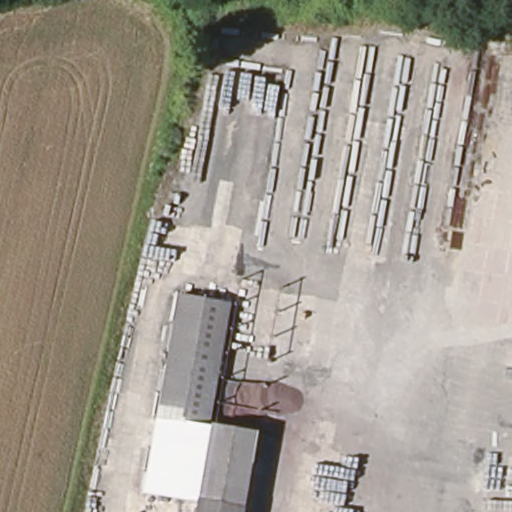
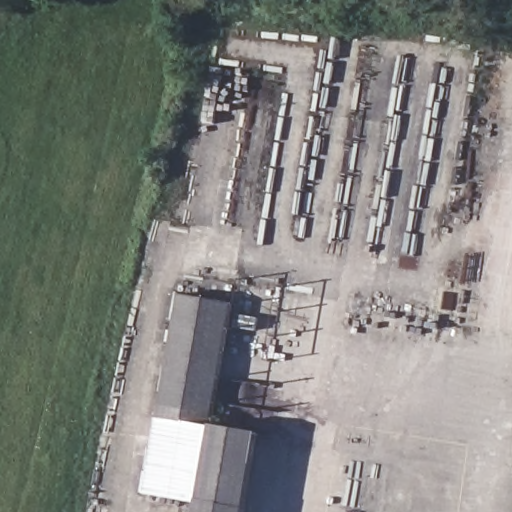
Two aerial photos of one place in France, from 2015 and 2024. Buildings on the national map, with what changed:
unchanged [(214,424),(201,499),(151,490),(187,294),(236,303),(214,424)]
unchanged [(205,500),(201,499),(214,424),(265,433),(251,512),(203,512),(205,500)]

